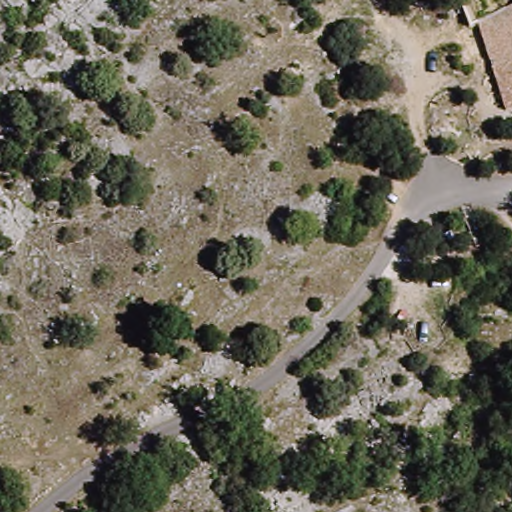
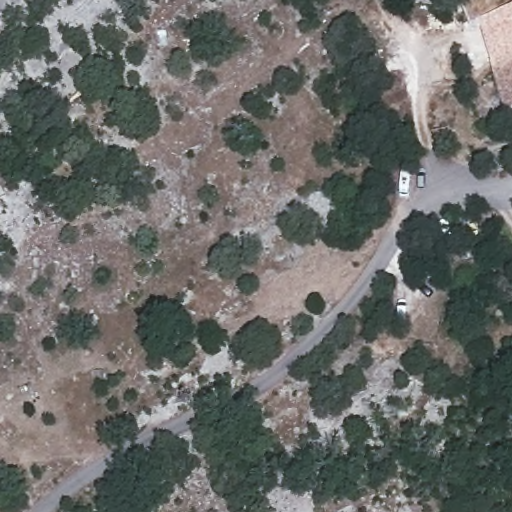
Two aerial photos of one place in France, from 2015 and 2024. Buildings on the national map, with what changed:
unchanged [(504,0),(507,6),(512,4),(512,111),(508,113),(481,30),(473,35),(462,9),(478,0),(504,0)]

